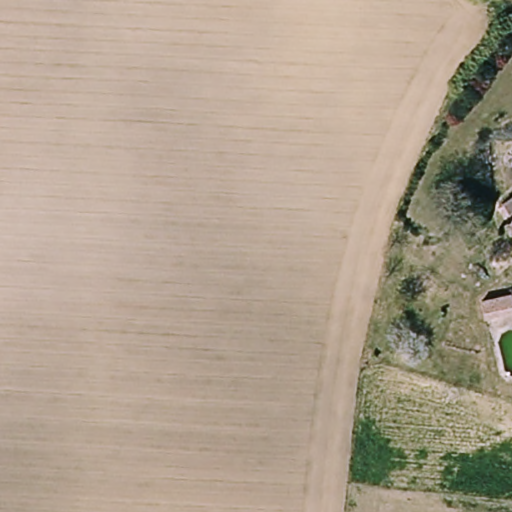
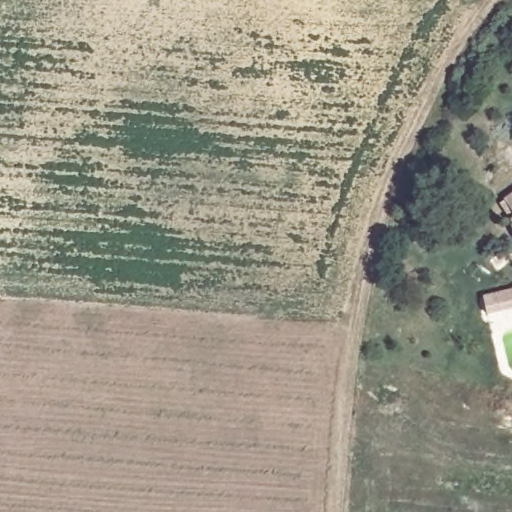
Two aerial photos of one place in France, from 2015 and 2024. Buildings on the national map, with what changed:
unchanged [(497,311),(494,295),(512,291),(512,307),(497,311)]

